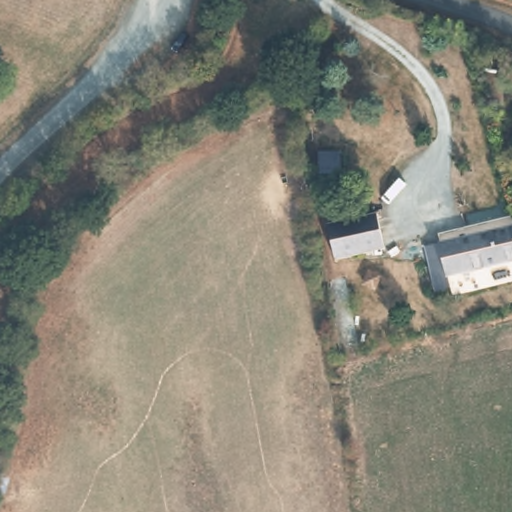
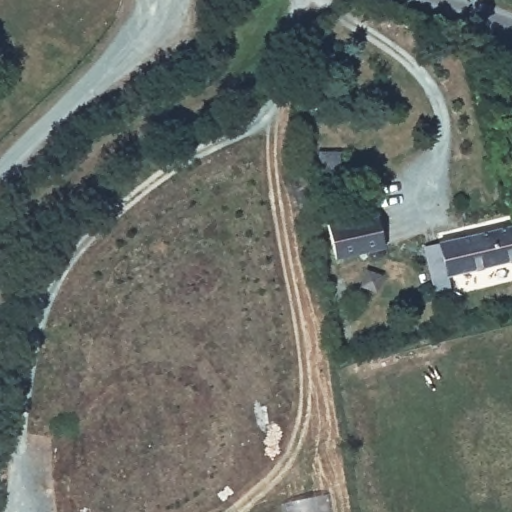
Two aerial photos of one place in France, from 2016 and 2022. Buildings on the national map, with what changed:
unchanged [(340,150),(340,185),(320,186),(320,152),(340,150)]
unchanged [(323,226),(370,215),(378,250),(330,260),(323,226)]
unchanged [(512,224),(512,267),(508,254),(500,256),(491,229),(512,224)]
unchanged [(500,256),(446,275),(444,270),(440,245),(491,229),(500,256)]
new [(280,501),(325,493),(329,512),(283,512),(280,501)]

